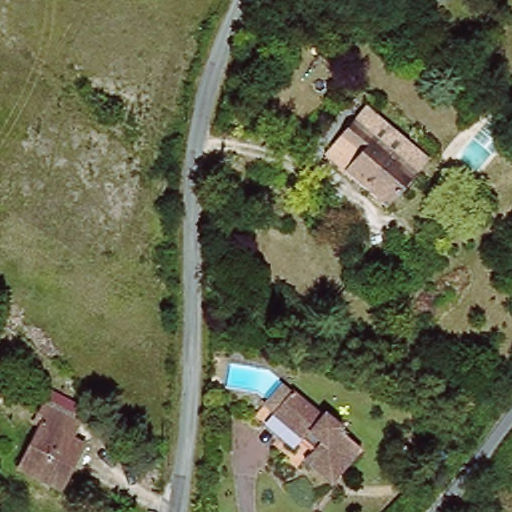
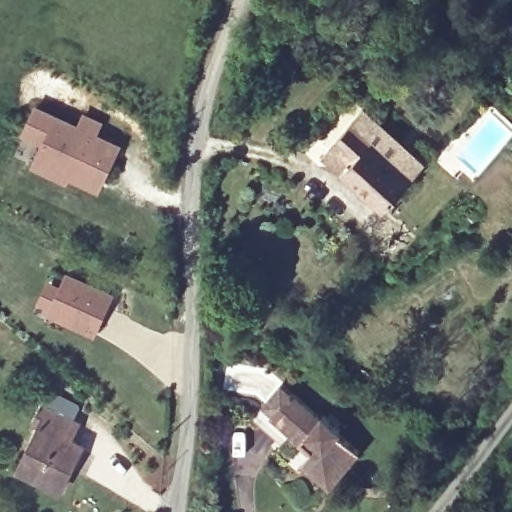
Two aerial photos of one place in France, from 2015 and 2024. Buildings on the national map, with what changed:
new [(76,124),(82,111),(103,121),(98,134),(119,145),(100,191),(73,180),(71,184),(32,165),(40,145),(19,135),(34,104),(76,124)]
unchanged [(352,123),(365,110),(429,165),(415,177),(352,123)]
unchanged [(388,211),(324,157),(352,123),(415,177),(388,211)]
new [(62,273),(107,295),(90,331),(45,310),(62,273)]
unchanged [(287,451),(257,427),(284,390),(295,399),(277,420),(298,438),(287,451)]
unchanged [(277,420),(295,399),(322,422),(325,420),(342,435),(339,438),(361,455),(336,487),(308,466),(321,448),(307,436),(303,442),(298,438),(277,420)]
unchanged [(80,445),(59,490),(15,468),(37,425),(30,421),(41,404),(75,422),(69,440),(80,445)]

